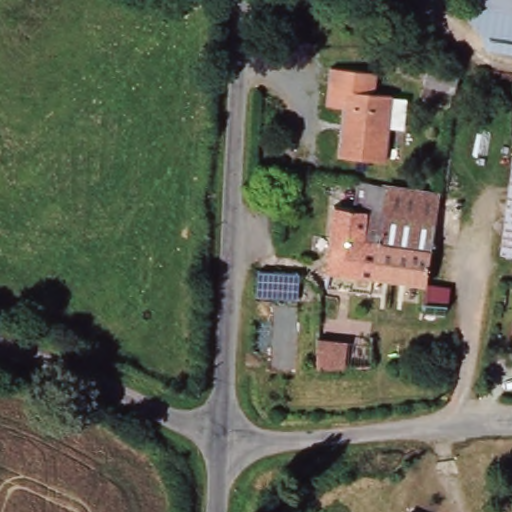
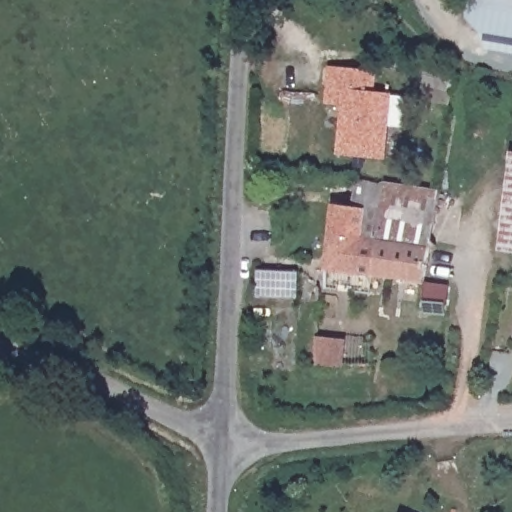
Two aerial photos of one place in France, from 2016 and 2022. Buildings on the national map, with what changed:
unchanged [(481,31),(468,6),(469,0),(512,0),(512,52),(487,47),(481,31)]
unchanged [(404,129),(390,127),(385,161),(338,156),(344,106),(326,104),(331,68),(365,72),(376,74),(374,92),(408,96),(404,129)]
unchanged [(455,76),(452,95),(435,92),(439,72),(455,76)]
unchanged [(511,153),(512,153),(512,253),(500,252),(511,153)]
unchanged [(425,280),(372,274),(370,289),(323,284),(332,200),(352,202),(355,176),(411,185),(440,189),(425,280)]
unchanged [(299,271),(297,297),(257,294),(259,267),(299,271)]
unchanged [(316,339),(371,338),(372,367),(316,370),(316,339)]

